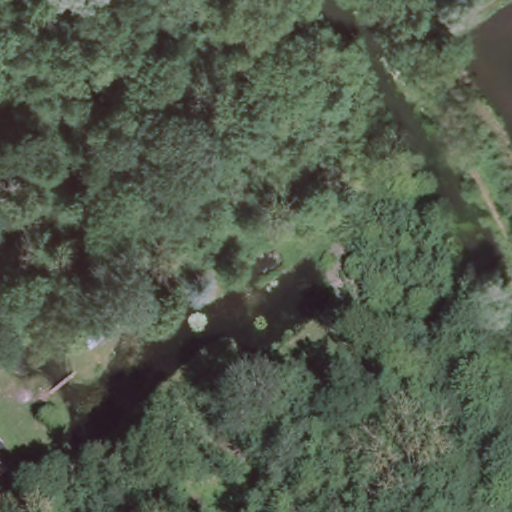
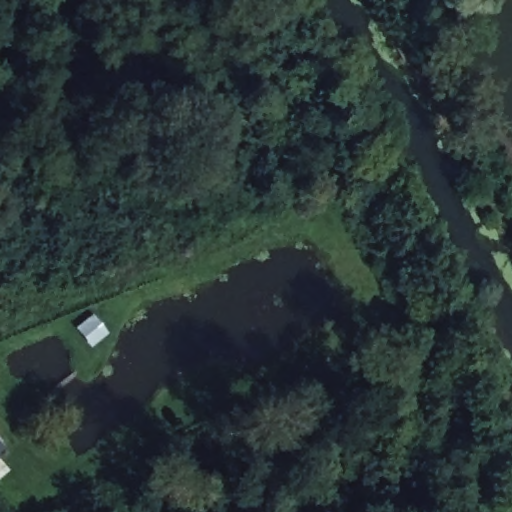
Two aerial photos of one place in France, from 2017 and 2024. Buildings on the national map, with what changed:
unchanged [(82,332),(103,320),(113,332),(91,349),(82,332)]
unchanged [(5,443),(0,447),(0,438),(5,443)]
unchanged [(15,476),(9,488),(0,478),(0,453),(15,476)]

